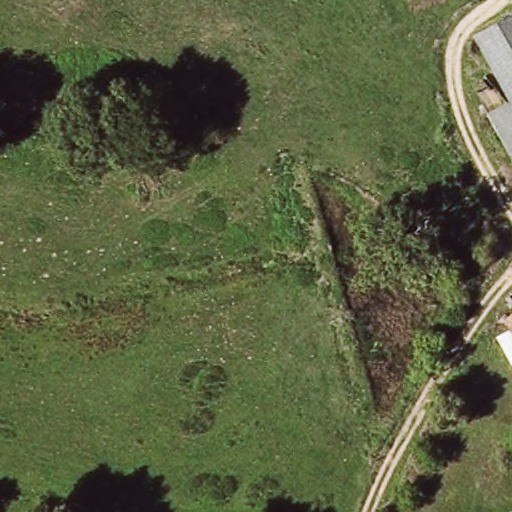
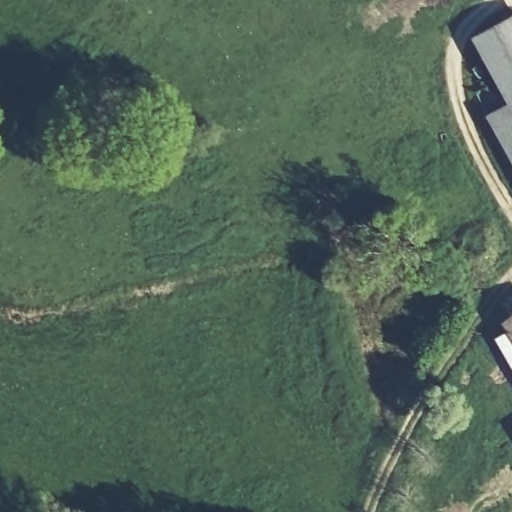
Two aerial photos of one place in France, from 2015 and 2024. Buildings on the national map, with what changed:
unchanged [(486,36),(512,22),(512,85),(486,36)]
unchanged [(512,109),(512,132),(502,114),(512,109)]

